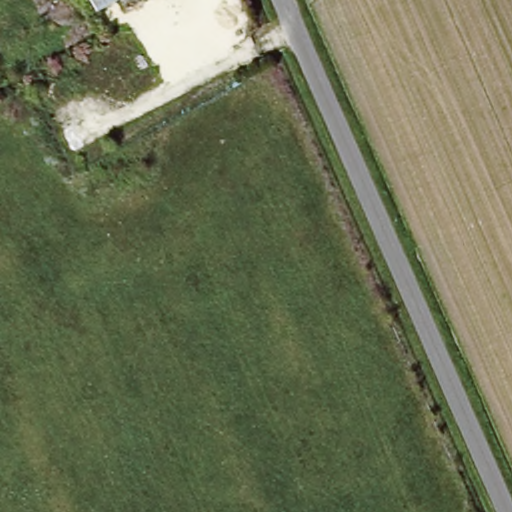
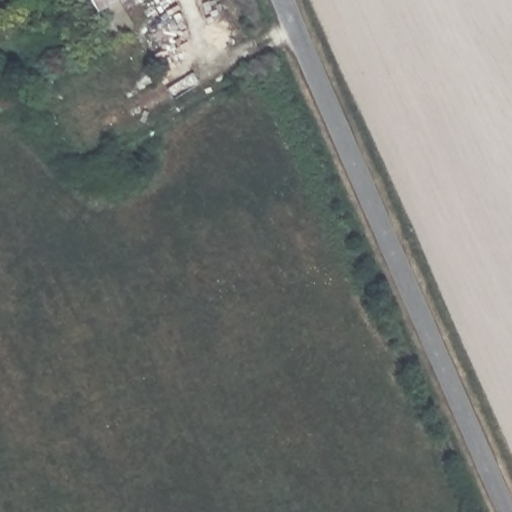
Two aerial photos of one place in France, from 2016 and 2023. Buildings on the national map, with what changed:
unchanged [(96,7),(92,0),(108,0),(96,7)]

